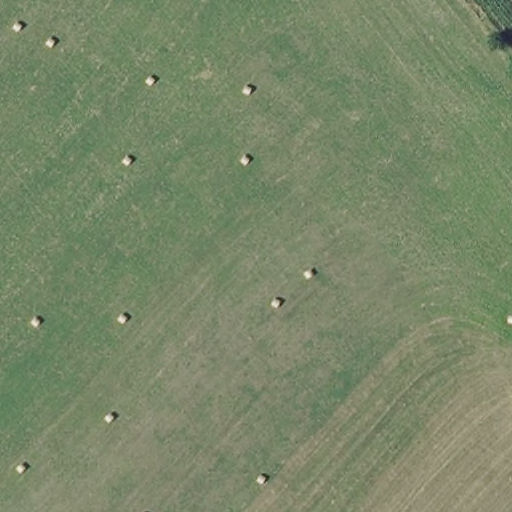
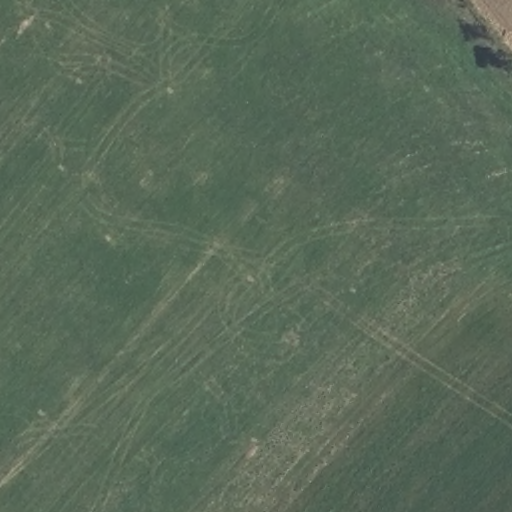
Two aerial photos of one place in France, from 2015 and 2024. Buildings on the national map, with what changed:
[]

